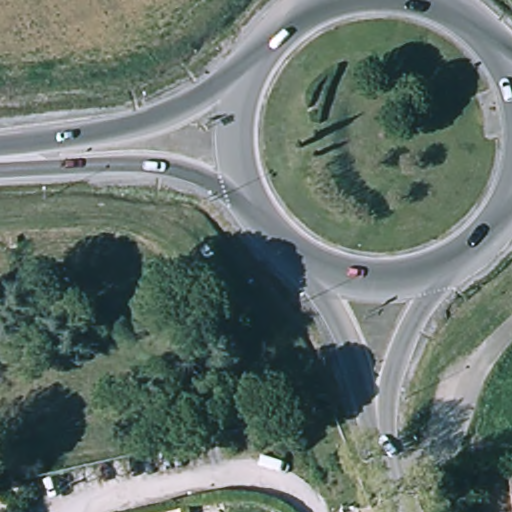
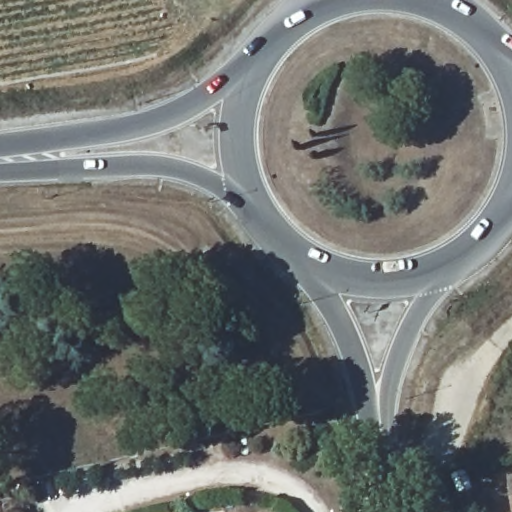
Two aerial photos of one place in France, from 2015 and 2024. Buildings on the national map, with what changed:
unchanged [(509,480),(512,480),(512,512),(509,480)]

